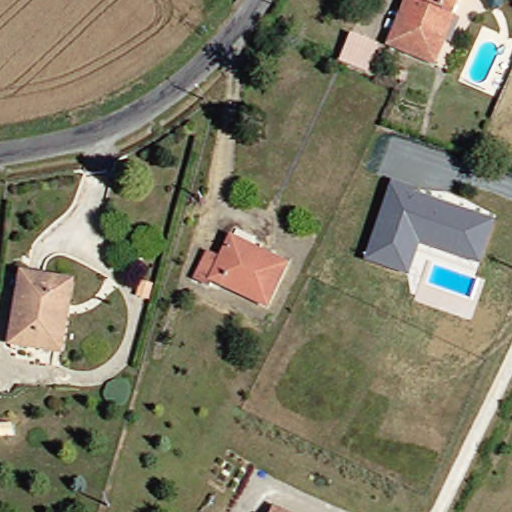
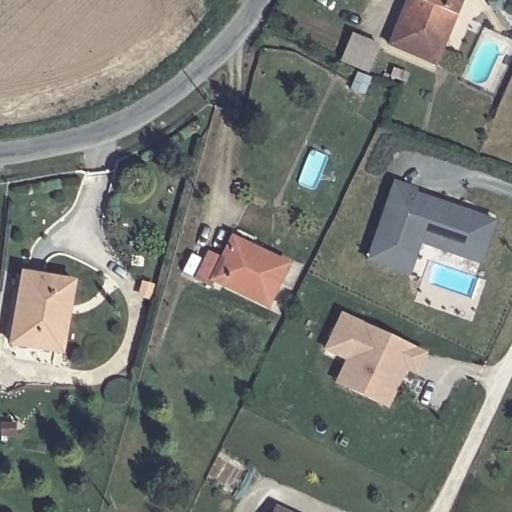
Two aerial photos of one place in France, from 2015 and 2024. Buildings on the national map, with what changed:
unchanged [(452,12),(441,39),(447,42),(435,69),(386,47),(397,20),(402,22),(412,0),(463,0),(457,15),(452,12)]
unchanged [(381,44),(367,74),(340,62),(351,34),(381,44)]
unchanged [(497,221),(481,266),(421,247),(411,277),(365,261),(391,182),(497,221)]
unchanged [(282,264),(261,307),(211,282),(207,289),(192,282),(205,255),(220,262),(232,239),(282,264)]
unchanged [(48,345),(7,340),(16,276),(66,282),(62,305),(59,346),(48,345)]
new [(388,406),(352,388),(338,381),(351,357),(329,347),(347,313),(427,356),(417,375),(407,370),(398,387),(388,406)]
unchanged [(276,511),(278,512),(275,512),(276,511)]

